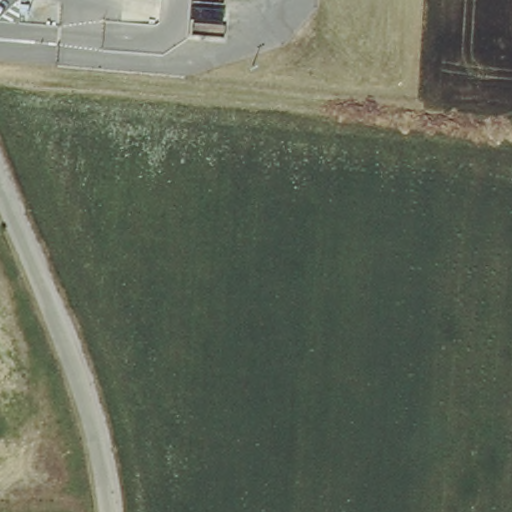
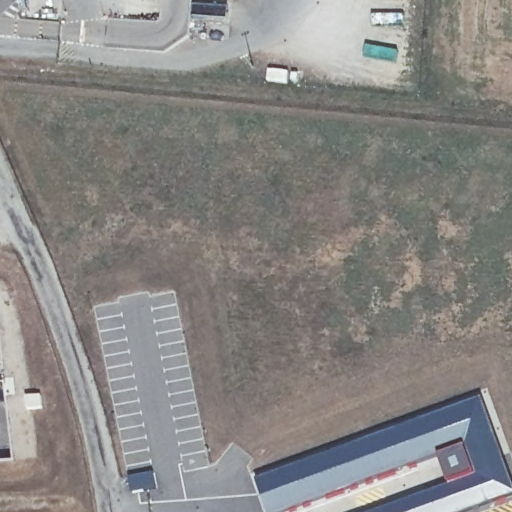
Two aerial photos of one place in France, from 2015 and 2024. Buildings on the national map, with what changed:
new [(483,392),(512,482),(512,494),(464,512),(342,512),(442,477),(434,455),(284,512),(266,512),(253,475),(483,392)]
new [(153,472),(156,490),(129,493),(125,476),(153,472)]

